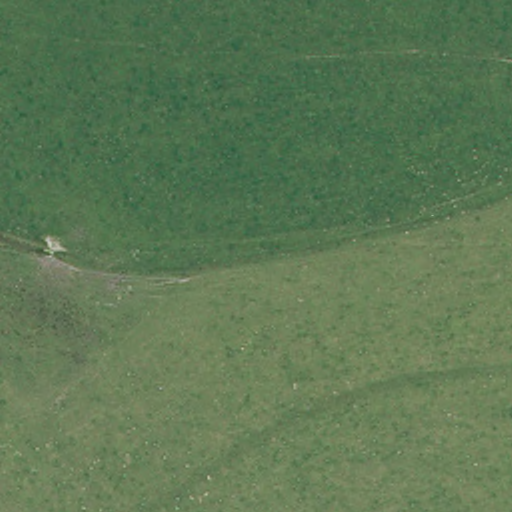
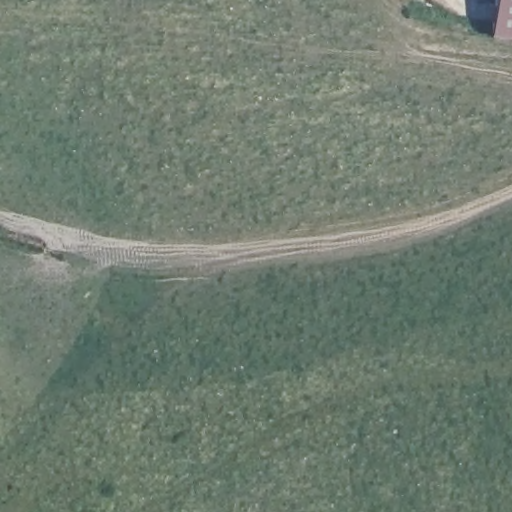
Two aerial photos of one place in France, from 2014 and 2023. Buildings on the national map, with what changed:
new [(491,38),(494,0),(512,0),(512,40),(491,38)]

